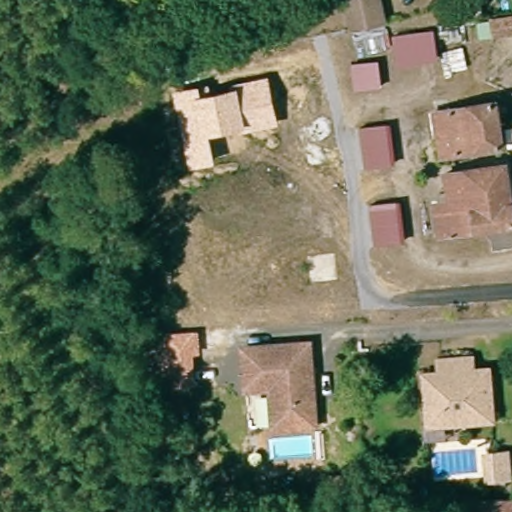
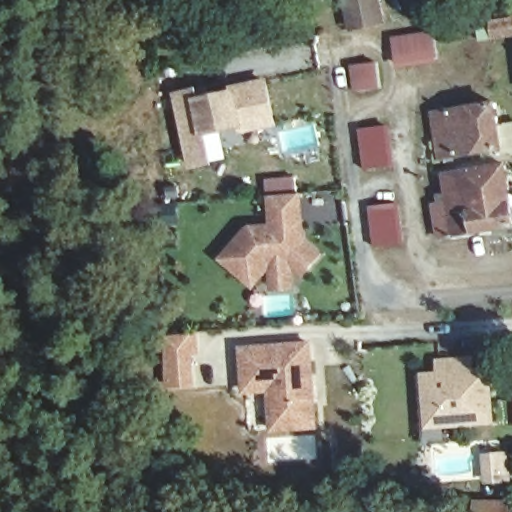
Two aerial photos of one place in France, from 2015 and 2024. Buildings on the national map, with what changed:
unchanged [(387,17),(355,24),(349,0),(383,0),(387,17)]
unchanged [(495,17),(512,15),(512,31),(496,33),(495,17)]
unchanged [(435,30),(439,59),(395,65),(392,35),(435,30)]
unchanged [(379,60),(383,90),(355,94),(351,65),(379,60)]
unchanged [(210,85),(210,90),(268,75),(280,126),(241,136),(240,128),(210,135),(215,165),(186,170),(173,92),(210,85)]
unchanged [(506,149),(443,159),(436,114),(499,104),(506,149)]
unchanged [(391,124),(397,165),(365,170),(360,127),(391,124)]
unchanged [(436,206),(441,205),(440,196),(450,195),(447,176),(509,165),(512,183),(512,227),(442,239),(436,206)]
new [(323,254),(302,277),(295,271),(295,290),(270,291),(268,272),(252,288),(217,257),(249,223),(270,221),(267,194),(303,191),(306,237),(323,254)]
unchanged [(400,201),(406,244),(374,247),(368,206),(400,201)]
unchanged [(202,355),(193,356),(196,392),(165,395),(161,334),(200,330),(202,355)]
unchanged [(314,427),(271,430),(268,391),(244,392),(242,377),(240,350),(307,345),(314,427)]
unchanged [(431,432),(430,417),(426,381),(442,380),(441,367),(474,364),(475,377),(491,376),(495,422),(495,427),(431,432)]
unchanged [(510,475),(490,477),(487,451),(508,449),(510,475)]
new [(332,475),(362,475),(362,491),(332,491),(332,475)]
unchanged [(512,503),(512,512),(489,512),(490,502),(512,503)]
unchanged [(472,512),(471,511),(481,511),(481,512),(472,512)]

